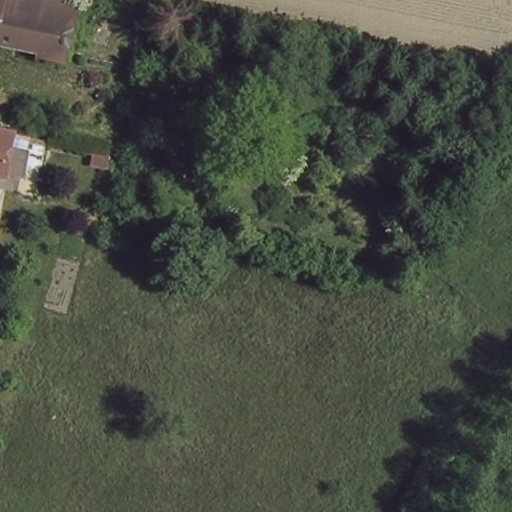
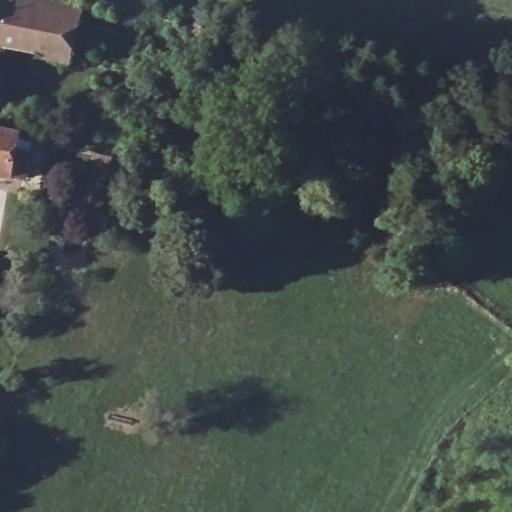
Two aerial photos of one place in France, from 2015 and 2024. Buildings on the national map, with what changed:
unchanged [(0,48),(0,0),(49,0),(81,7),(69,63),(0,48)]
unchanged [(11,157),(25,159),(20,186),(0,182),(0,140),(13,143),(11,157)]

